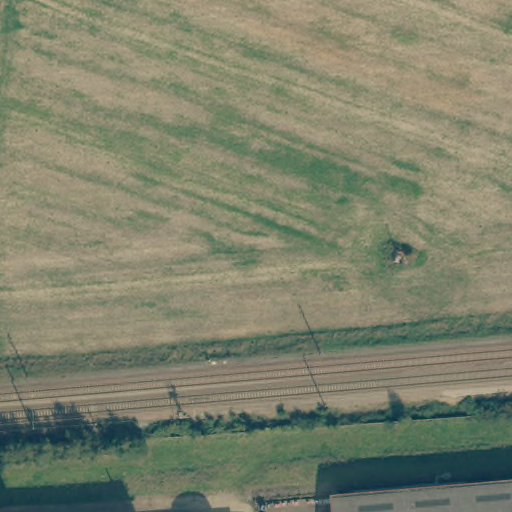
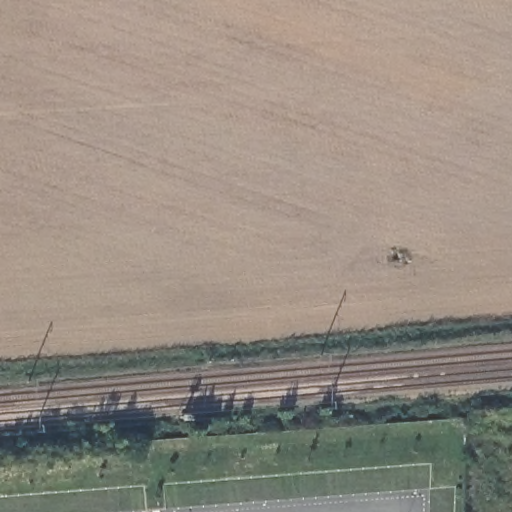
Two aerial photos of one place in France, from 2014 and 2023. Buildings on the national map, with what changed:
demolished [(338,492),(512,478),(512,512),(339,512),(338,492)]

